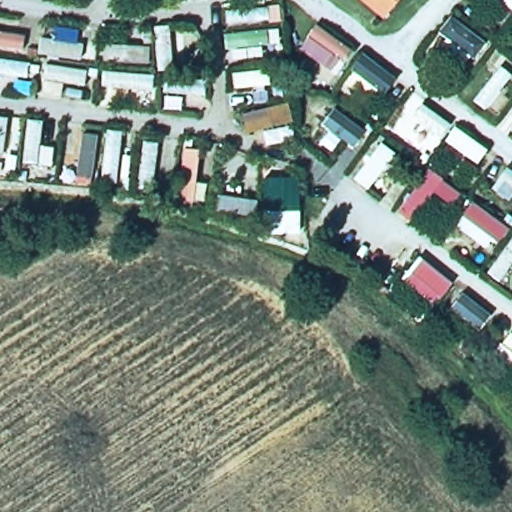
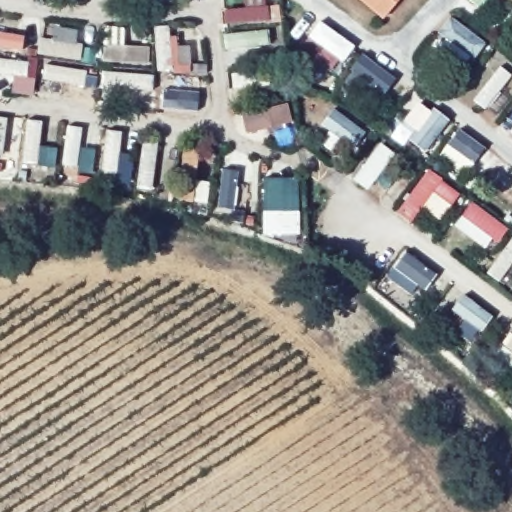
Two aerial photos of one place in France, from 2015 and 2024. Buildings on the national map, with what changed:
unchanged [(356,0),(398,0),(383,21),(356,0)]

